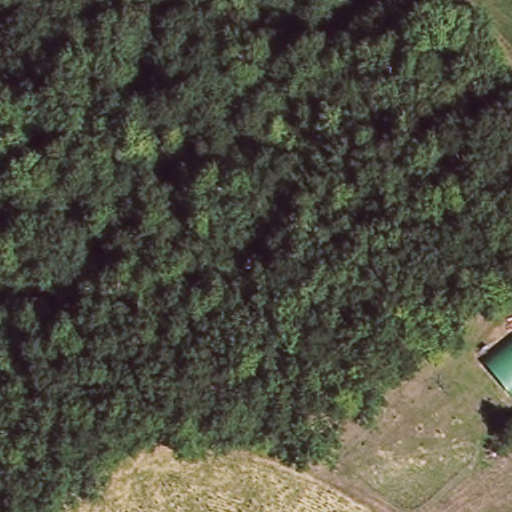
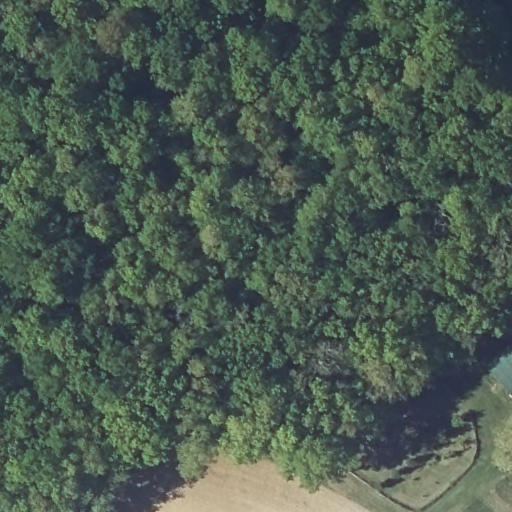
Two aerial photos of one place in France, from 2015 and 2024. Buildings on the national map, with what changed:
unchanged [(512,346),(512,393),(487,366),(512,346)]

